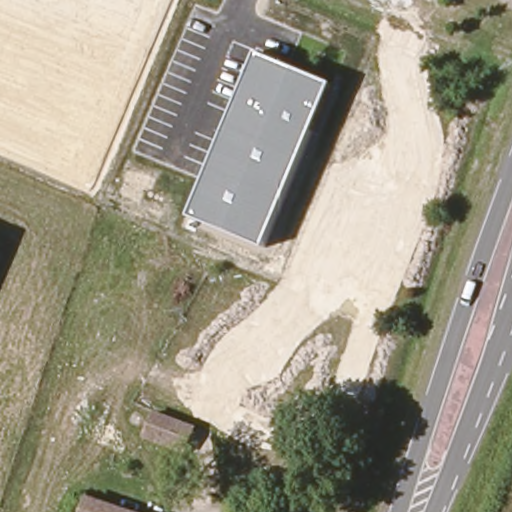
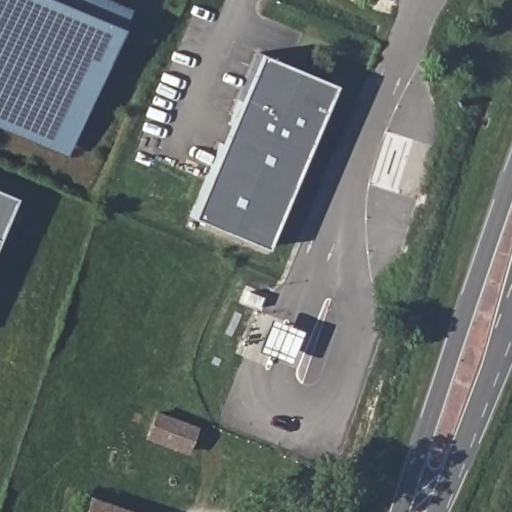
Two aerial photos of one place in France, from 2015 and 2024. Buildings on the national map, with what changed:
new [(67,155),(0,127),(0,0),(112,0),(131,8),(122,27),(67,155)]
unchanged [(265,247),(191,217),(259,52),(334,84),(265,247)]
new [(16,197),(0,233),(0,191),(16,197)]
unchanged [(151,435),(161,415),(196,430),(187,450),(151,435)]
unchanged [(93,498),(129,512),(87,512),(93,498)]

